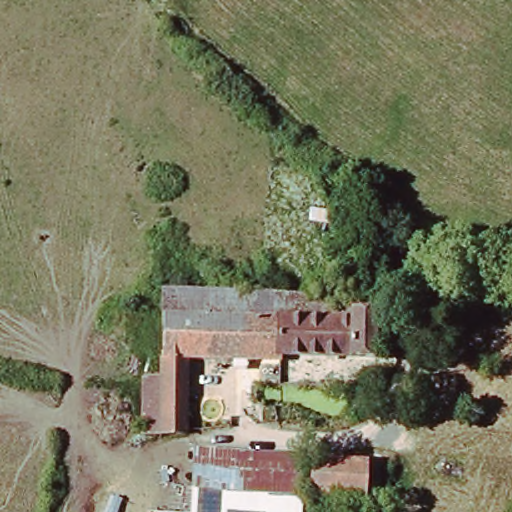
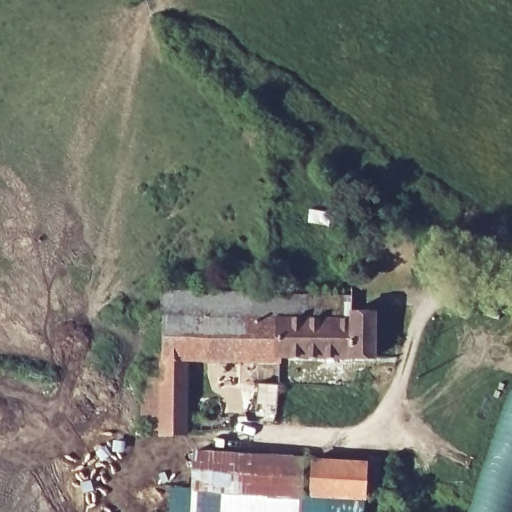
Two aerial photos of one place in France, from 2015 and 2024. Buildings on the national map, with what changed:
unchanged [(157,437),(140,436),(141,379),(159,379),(161,292),(350,296),(349,311),(372,311),(371,357),(277,356),(277,361),(184,361),(182,437),(157,437)]
new [(476,512),(512,404),(512,511),(512,512),(476,512)]
unchanged [(304,460),(302,497),(193,492),(196,455),(304,460)]
unchanged [(367,463),(364,500),(312,498),(314,461),(367,463)]
unchanged [(301,512),(183,512),(184,491),(193,492),(302,497),(301,512)]

